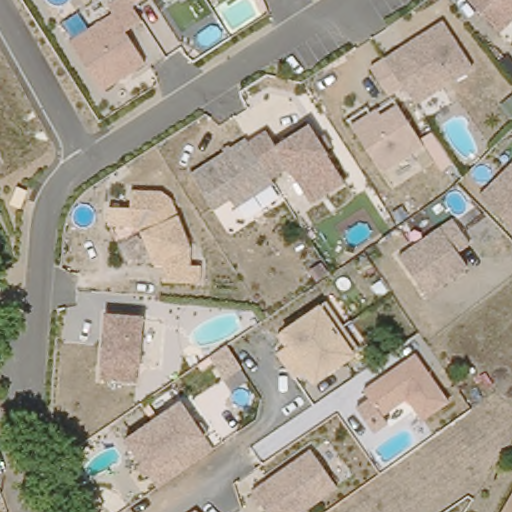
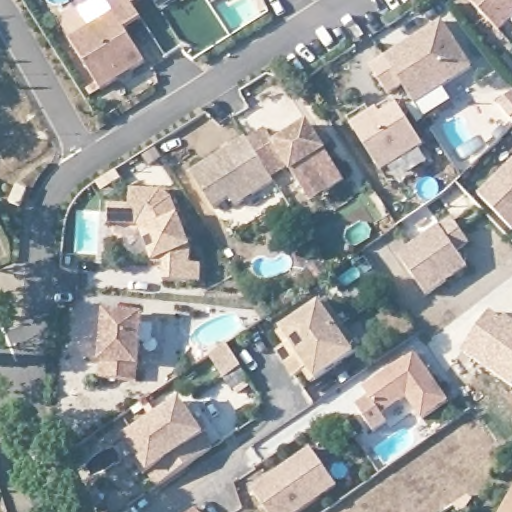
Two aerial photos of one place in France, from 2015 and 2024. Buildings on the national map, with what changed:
unchanged [(144,24),(131,33),(147,68),(105,94),(72,40),(110,16),(106,6),(115,0),(153,0),(138,11),(144,24)]
unchanged [(467,0),(512,0),(512,22),(499,34),(467,0)]
unchanged [(472,70),(415,105),(403,87),(389,98),(370,68),(444,25),(472,70)]
unchanged [(422,148),(381,176),(348,123),(367,111),(374,119),(395,105),(422,148)]
unchanged [(345,184),(311,206),(293,175),(238,212),(233,203),(213,216),(190,176),(266,129),(277,145),(310,125),(345,184)]
unchanged [(475,199),(512,161),(512,234),(475,199)]
unchanged [(169,194),(191,244),(188,264),(205,266),(203,288),(165,284),(167,266),(152,266),(141,231),(106,229),(106,209),(129,209),(129,195),(169,194)]
unchanged [(457,220),(472,246),(459,257),(466,271),(423,294),(398,255),(457,220)]
unchanged [(360,354),(316,387),(284,334),(330,304),(360,354)]
new [(490,310),(502,319),(504,314),(512,320),(512,387),(460,352),(490,310)]
unchanged [(147,318),(141,388),(99,385),(103,318),(147,318)]
new [(243,367),(228,377),(212,354),(228,344),(243,367)]
unchanged [(457,406),(423,425),(406,402),(386,414),(393,427),(374,437),(355,410),(367,402),(359,391),(414,357),(457,406)]
unchanged [(213,451),(156,494),(120,443),(182,398),(213,451)]
unchanged [(339,488),(305,512),(265,512),(251,493),(309,449),(339,488)]
unchanged [(512,491),(512,512),(499,512),(512,491)]

